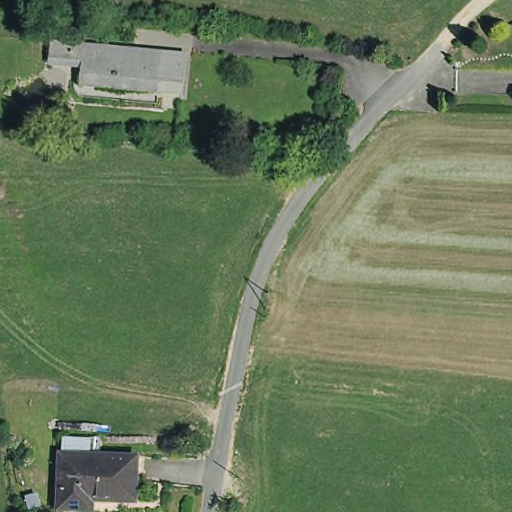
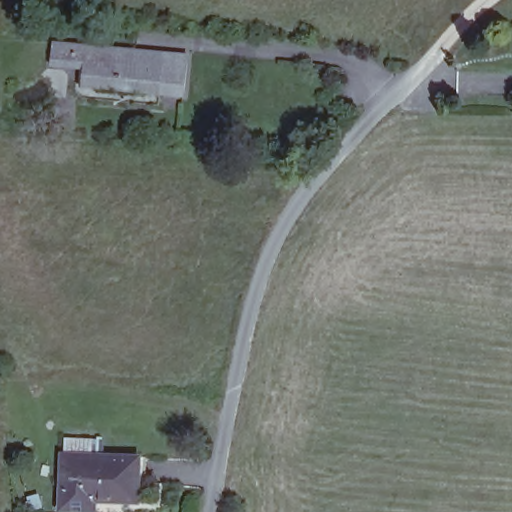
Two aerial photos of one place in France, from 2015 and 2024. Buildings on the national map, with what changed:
unchanged [(77,85),(78,67),(46,64),(46,57),(48,41),(132,48),(134,27),(191,32),(189,54),(183,53),(178,94),(172,93),(155,92),(98,87),(77,85)]
unchanged [(73,448),(150,450),(148,495),(95,492),(95,503),(72,502),(73,448)]

